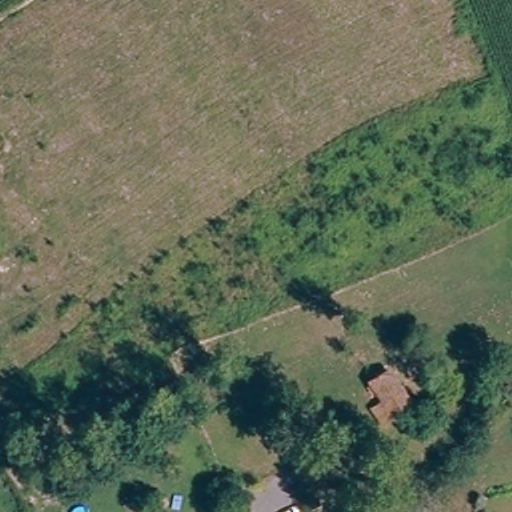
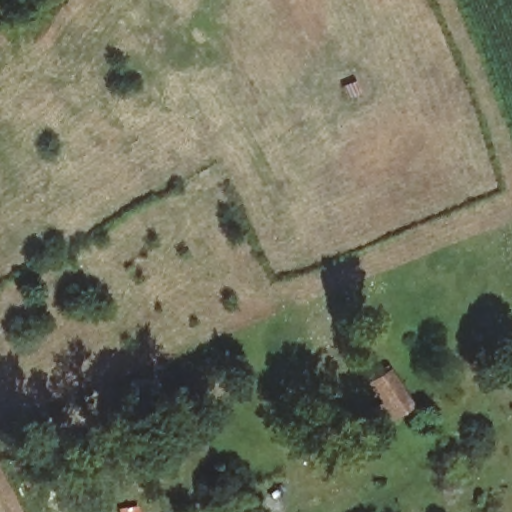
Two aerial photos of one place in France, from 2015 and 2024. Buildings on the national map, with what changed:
unchanged [(407,408),(374,421),(367,404),(379,400),(370,378),(392,370),(407,408)]

